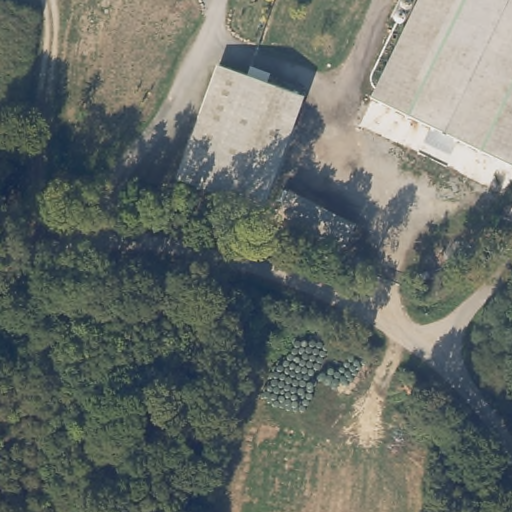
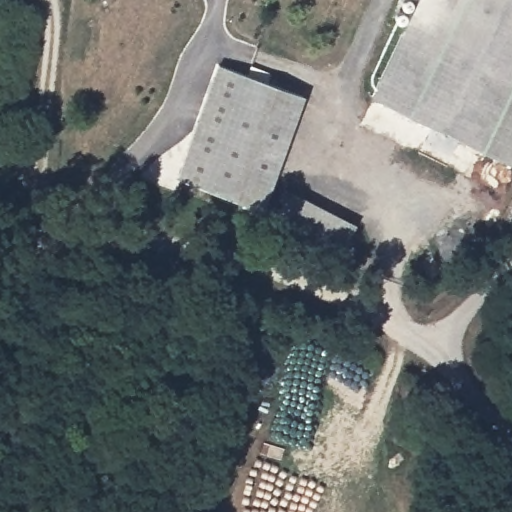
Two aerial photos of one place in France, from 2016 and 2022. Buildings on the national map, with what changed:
unchanged [(512,164),(393,107),(371,96),(418,0),(512,0),(512,164)]
unchanged [(249,75),(302,95),(261,209),(207,190),(177,179),(220,64),(249,75)]
unchanged [(288,191),(355,224),(342,249),(276,216),(288,191)]
unchanged [(342,257),(340,263),(333,260),(336,254),(342,257)]

